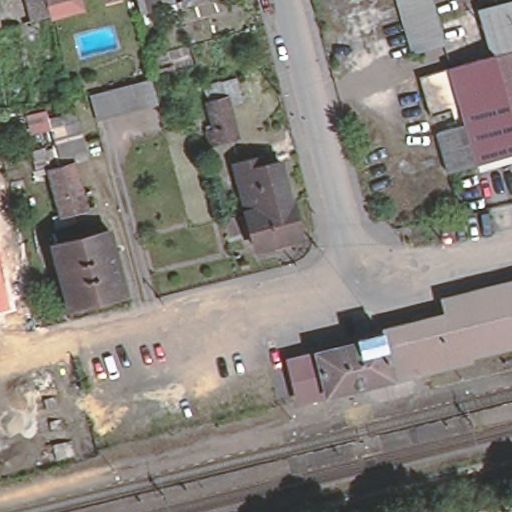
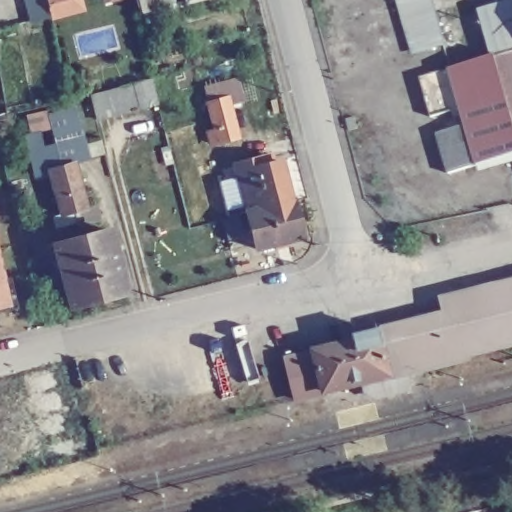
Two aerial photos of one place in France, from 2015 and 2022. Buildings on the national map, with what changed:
unchanged [(10,4),(9,0),(23,0),(10,4)]
unchanged [(83,13),(52,22),(50,22),(31,27),(23,0),(80,0),(83,13)]
unchanged [(110,5),(109,0),(134,0),(110,5)]
unchanged [(156,11),(140,16),(136,0),(154,0),(156,11)]
unchanged [(185,4),(185,0),(200,0),(185,4)]
unchanged [(446,45),(413,54),(398,0),(433,0),(446,45)]
unchanged [(512,5),(492,11),(489,0),(512,0),(512,5)]
unchanged [(464,125),(448,69),(477,62),(491,59),(479,14),(492,11),(512,5),(512,156),(475,165),(464,125)]
unchanged [(134,87),(152,83),(158,106),(140,111),(125,115),(111,119),(96,123),(90,100),(105,95),(120,91),(134,87)]
unchanged [(69,169),(45,175),(36,177),(31,152),(53,146),(50,131),(28,137),(25,116),(47,111),(49,118),(60,115),(57,106),(72,102),(86,151),(71,155),(74,168),(69,169)]
unchanged [(207,137),(213,136),(206,110),(225,105),(235,142),(216,147),(210,149),(207,137)]
unchanged [(446,173),(434,133),(464,125),(475,165),(446,173)]
unchanged [(235,171),(263,165),(265,175),(279,172),(290,209),(247,220),(237,182),(235,171)]
unchanged [(69,169),(79,212),(55,218),(45,175),(69,169)]
unchanged [(247,220),(290,209),(291,209),(301,245),(254,257),(245,220),(247,220)]
unchanged [(102,234),(119,297),(65,311),(48,247),(102,234)]
unchanged [(8,307),(0,309),(0,269),(8,307)]
unchanged [(512,346),(461,359),(452,329),(450,320),(512,304),(512,346)]
unchanged [(392,388),(382,347),(452,329),(461,359),(464,371),(408,385),(410,391),(402,404),(375,410),(365,403),(363,396),(392,388)]
unchanged [(296,413),(286,373),(360,355),(358,350),(382,345),(382,347),(392,388),(363,396),(296,413)]

